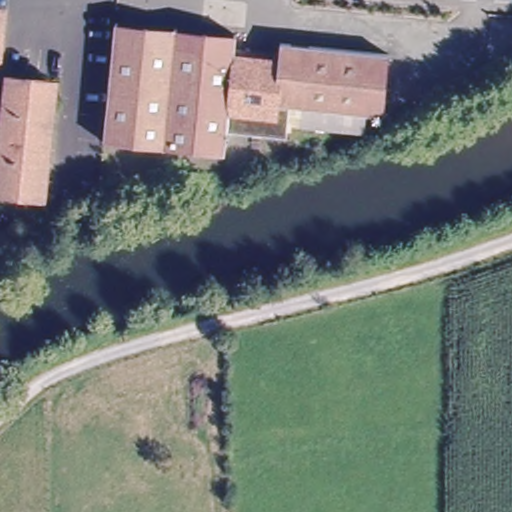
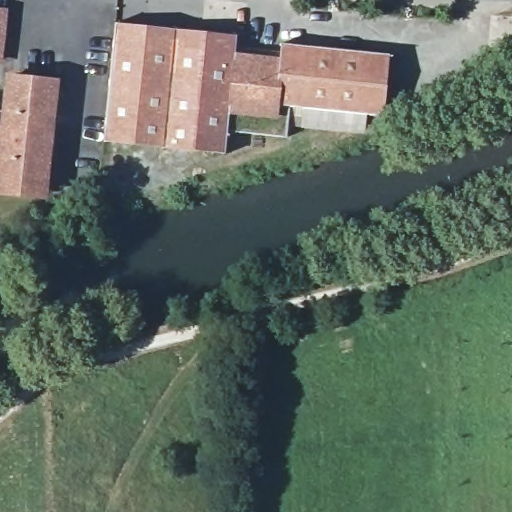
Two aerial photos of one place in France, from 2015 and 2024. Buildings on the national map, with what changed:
unchanged [(3,13),(0,38),(0,13),(3,13)]
unchanged [(114,22),(235,35),(234,51),(282,56),(283,44),(390,56),(384,116),(290,108),(286,139),(225,134),(224,154),(101,143),(114,22)]
unchanged [(9,78),(54,83),(41,198),(0,193),(0,156),(0,151),(0,113),(5,114),(9,78)]

